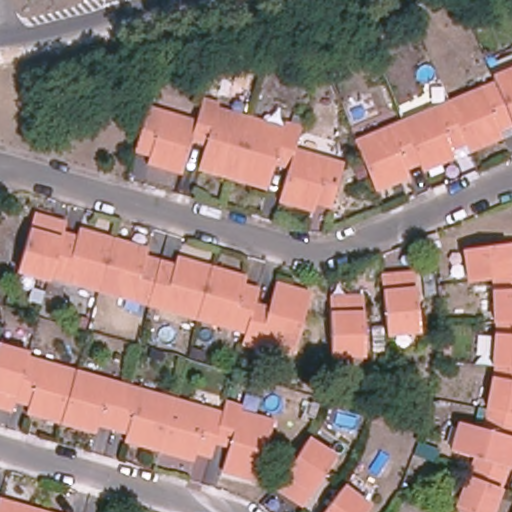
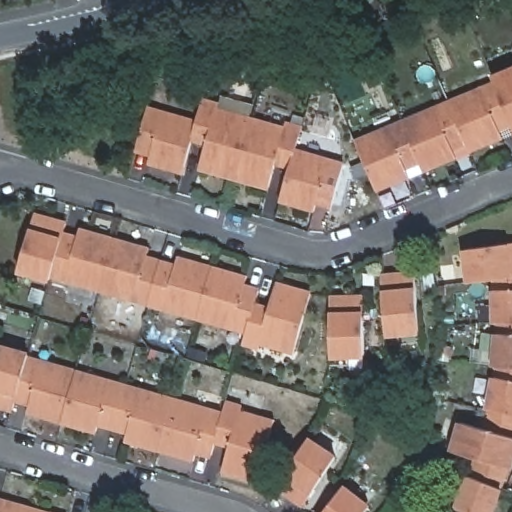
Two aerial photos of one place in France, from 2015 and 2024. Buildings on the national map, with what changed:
unchanged [(493,77),(512,69),(512,121),(499,91),(495,81),(493,77)]
unchanged [(499,91),(512,121),(512,123),(499,129),(502,136),(469,150),(466,143),(449,101),(495,81),(499,91)]
unchanged [(204,100),(218,103),(216,108),(286,128),(288,123),(302,127),(295,149),(290,166),(275,163),(268,187),(199,167),(206,143),(193,139),(198,121),(204,100)]
unchanged [(466,143),(453,149),(456,156),(424,170),(421,162),(403,121),(449,101),(466,143)]
unchanged [(193,139),(184,172),(151,163),(153,155),(135,150),(138,138),(148,106),(198,121),(193,139)]
unchanged [(421,162),(406,168),(409,176),(376,190),(356,141),(403,121),(421,162)]
unchanged [(295,149),(344,164),(332,206),(317,202),(315,210),(281,200),(290,166),(295,149)]
unchanged [(368,177),(359,181),(353,168),(363,164),(368,177)]
unchanged [(68,238),(56,281),(55,284),(23,275),(38,223),(40,219),(48,221),(71,228),(68,238)]
unchanged [(104,294),(56,281),(68,238),(82,242),(84,234),(118,244),(104,294)]
unchanged [(153,309),(104,294),(118,244),(154,254),(152,262),(166,265),(153,309)]
unchanged [(462,511),(474,480),(481,462),(457,456),(465,427),(489,433),(493,414),(499,381),(501,371),(499,371),(501,338),(502,327),(500,327),(499,294),(499,283),(474,286),(470,254),(512,248),(512,480),(507,493),(499,512),(462,512),(462,511)]
unchanged [(203,323),(153,309),(166,265),(180,269),(182,262),(217,272),(203,323)]
unchanged [(252,282),(250,290),(264,294),(260,309),(252,337),(203,323),(217,272),(252,282)]
unchanged [(387,334),(381,275),(403,273),(412,272),(413,277),(418,331),(387,334)]
unchanged [(260,309),(274,313),(281,288),(316,298),(299,357),(264,347),(263,352),(249,348),(252,337),(260,309)]
unchanged [(42,303),(33,301),(35,293),(44,295),(42,303)]
unchanged [(337,360),(336,317),(321,318),(320,303),(335,302),(357,301),(366,301),(366,306),(368,360),(337,360)]
unchanged [(86,327),(80,325),(82,316),(89,318),(86,327)]
unchanged [(29,348),(28,352),(16,395),(12,408),(0,404),(0,340),(29,348)]
unchanged [(131,349),(120,346),(122,340),(133,343),(131,349)]
unchanged [(203,360),(190,356),(192,347),(206,351),(203,360)]
unchanged [(61,416),(27,407),(29,399),(16,395),(28,352),(76,366),(61,416)]
unchanged [(113,423),(99,419),(97,426),(61,416),(76,366),(125,380),(113,423)]
unchanged [(160,445),(125,435),(127,427),(113,423),(125,380),(175,394),(160,445)]
unchanged [(216,437),(210,459),(160,445),(175,394),(224,408),(216,437)]
unchanged [(227,397),(241,401),(239,406),(274,416),(257,475),(223,465),(230,440),(216,437),(224,408),(227,397)]
unchanged [(371,422),(374,412),(377,403),(395,408),(396,406),(400,407),(396,418),(391,417),(385,415),(382,425),(371,422)]
unchanged [(284,483),(311,442),(313,438),(321,443),(339,455),(307,504),(289,492),(281,487),(284,483)]
unchanged [(341,489),(344,485),(351,491),(368,504),(362,512),(323,512),(341,489)]
unchanged [(33,512),(0,512),(0,499),(33,509),(33,512)]
unchanged [(45,512),(33,512),(33,509),(45,512)]

